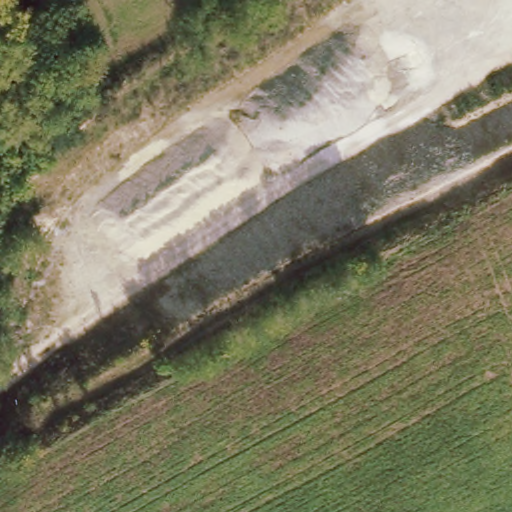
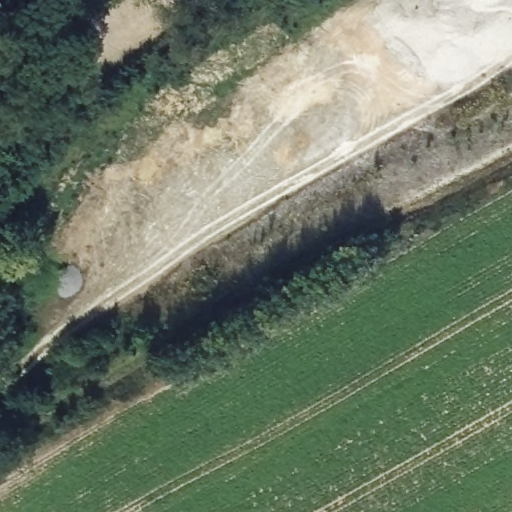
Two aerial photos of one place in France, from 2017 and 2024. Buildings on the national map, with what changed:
[]

